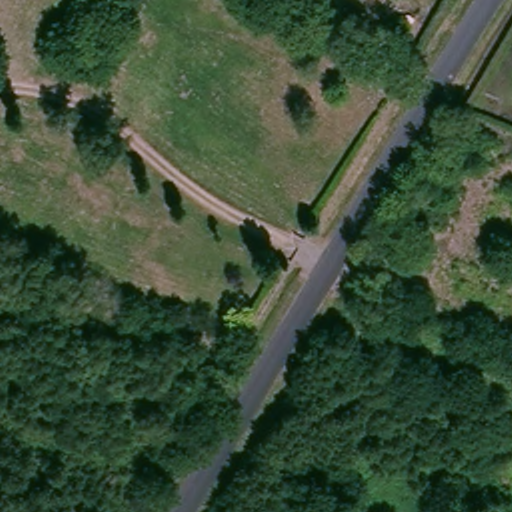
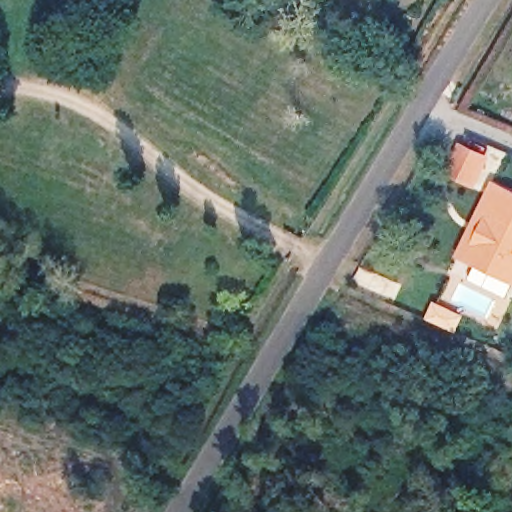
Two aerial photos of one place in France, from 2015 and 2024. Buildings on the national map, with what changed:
new [(512,281),(457,257),(493,180),(512,189),(512,281)]

